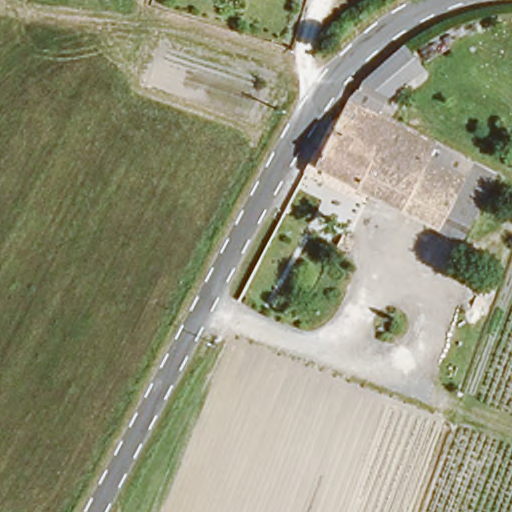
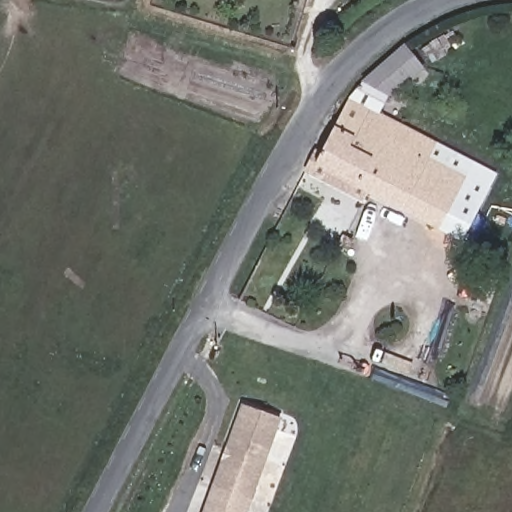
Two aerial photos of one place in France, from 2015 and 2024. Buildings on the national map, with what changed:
unchanged [(406,50),(422,73),(387,95),(362,83),(406,50)]
unchanged [(376,116),(492,177),(463,242),(314,166),(346,101),(362,83),(387,95),(376,116)]
new [(209,507),(216,487),(242,405),(280,417),(252,500),(249,512),(207,512),(209,507)]

